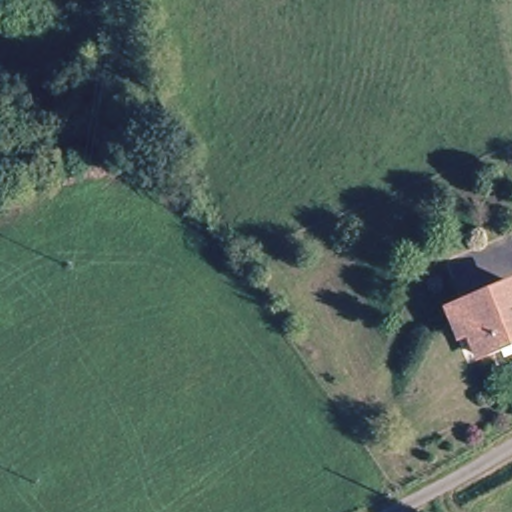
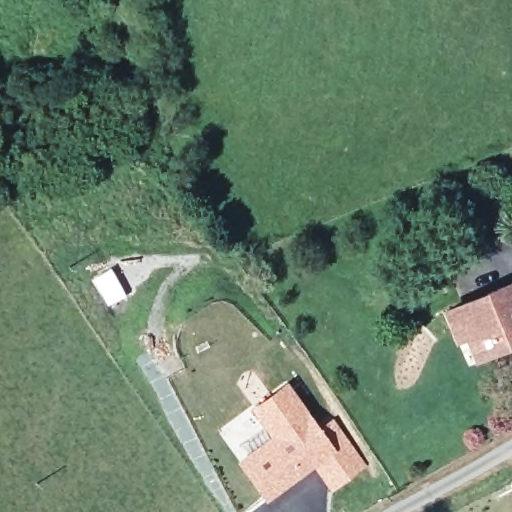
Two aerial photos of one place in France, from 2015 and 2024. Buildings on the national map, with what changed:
unchanged [(446,311),(465,302),(512,282),(512,283),(512,340),(475,356),(466,336),(459,339),(446,311)]
new [(319,427),(333,417),(367,465),(332,492),(314,468),(266,502),(235,461),(269,437),(249,408),(287,383),(319,427)]

